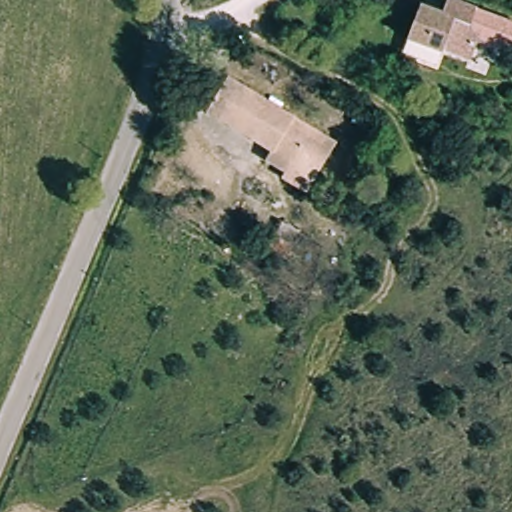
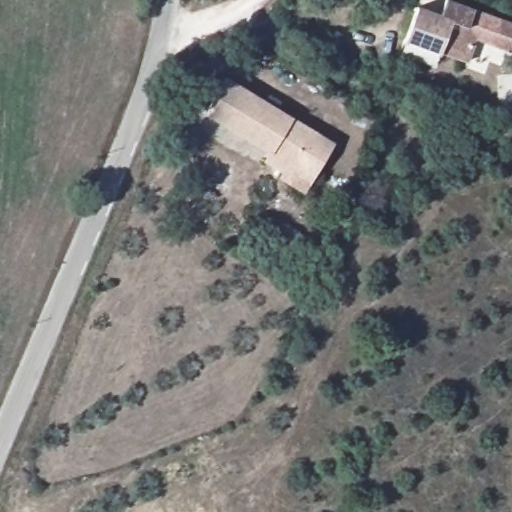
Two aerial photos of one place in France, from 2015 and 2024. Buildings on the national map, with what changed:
unchanged [(415,2),(439,11),(442,0),(454,0),(479,8),(471,32),(482,35),(474,59),(440,49),(403,37),(415,2)]
unchanged [(271,159),(203,122),(226,82),(292,118),(271,159)]
unchanged [(313,182),(271,159),(292,118),(335,141),(313,182)]

